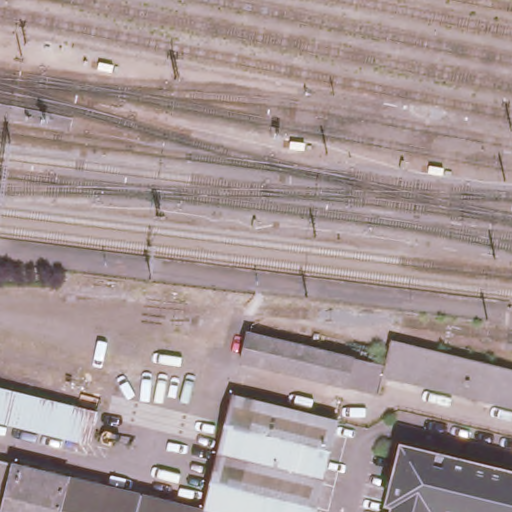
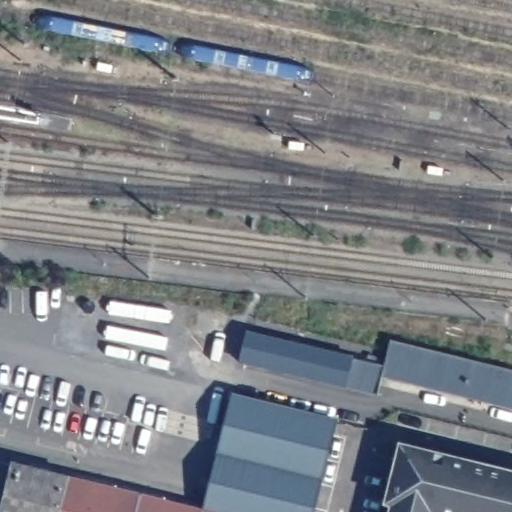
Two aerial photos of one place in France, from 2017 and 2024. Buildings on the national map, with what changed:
unchanged [(379,397),(239,365),(247,329),(384,364),(392,338),(512,368),(512,409),(384,378),(379,397)]
demolished [(91,446),(0,423),(0,385),(99,408),(91,446)]
unchanged [(200,504),(231,392),(338,418),(314,512),(0,512),(0,457),(200,504)]
unchanged [(383,502),(398,442),(512,470),(512,512),(387,512),(389,503),(383,502)]

